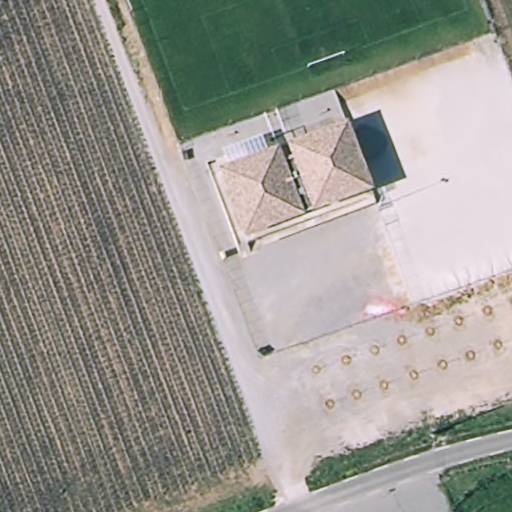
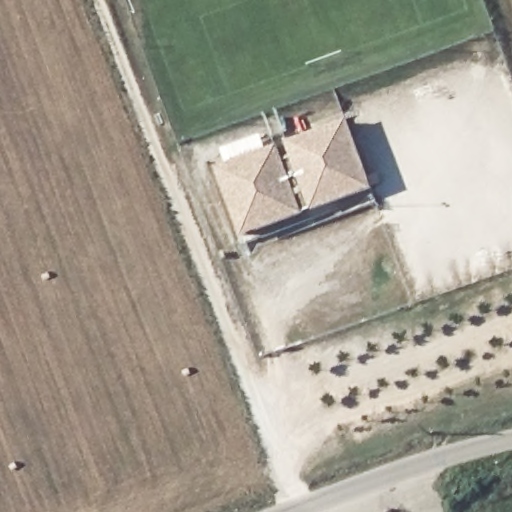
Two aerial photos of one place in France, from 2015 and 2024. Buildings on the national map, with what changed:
unchanged [(316,215),(313,209),(306,211),(308,216),(248,238),(222,170),(278,146),(284,160),(292,159),(288,144),(347,122),(373,191),(316,215)]

